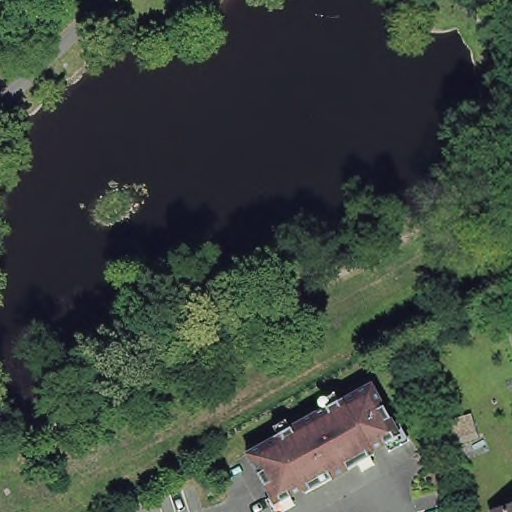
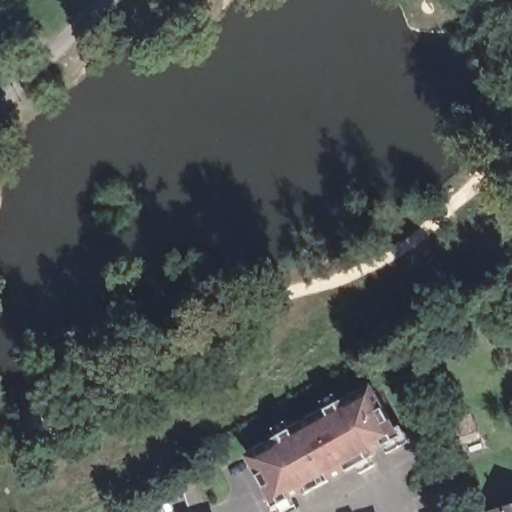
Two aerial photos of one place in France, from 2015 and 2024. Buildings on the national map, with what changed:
unchanged [(302,479),(275,495),(246,444),(274,428),(273,426),(341,388),(342,390),(370,374),(399,426),(371,441),(373,444),(347,459),(346,457),(330,466),(331,469),(317,476),(305,483),(302,479)]
unchanged [(437,431),(460,424),(460,421),(470,418),(475,430),(440,441),(437,431)]
unchanged [(512,501),(512,512),(498,512),(496,506),(512,501)]

